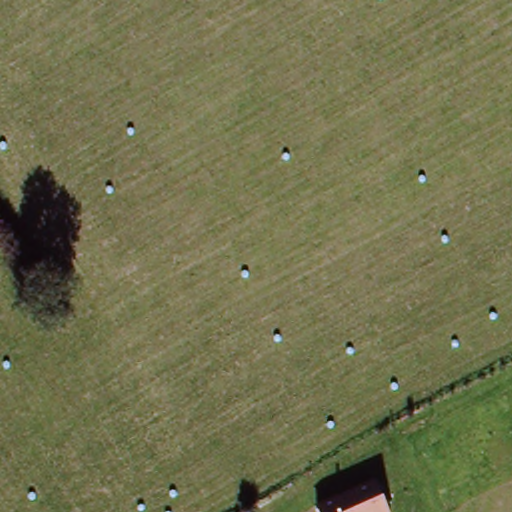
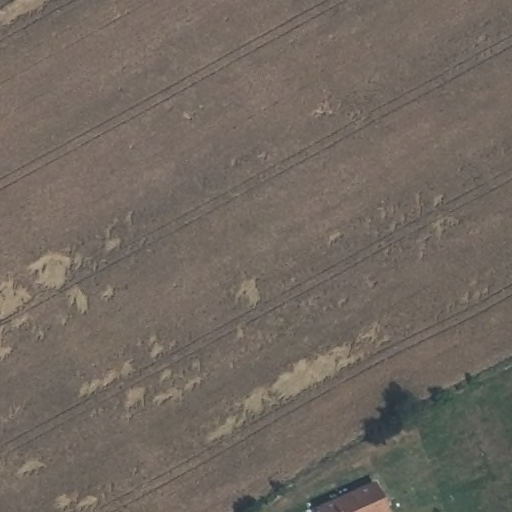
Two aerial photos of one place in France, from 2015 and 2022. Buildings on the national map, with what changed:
unchanged [(383,491),(391,512),(326,512),(383,491)]

